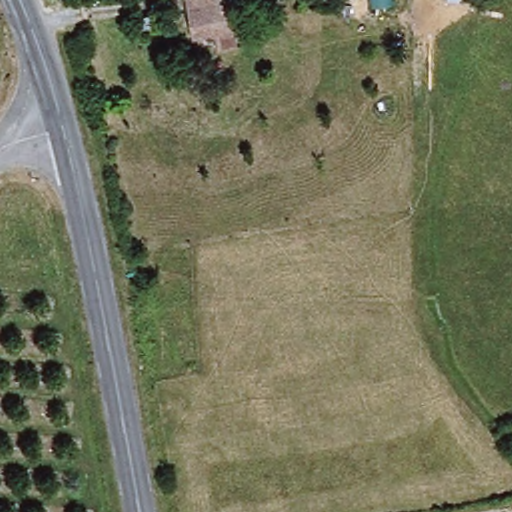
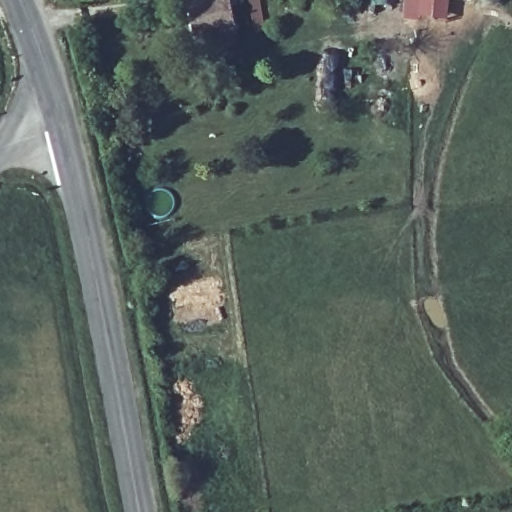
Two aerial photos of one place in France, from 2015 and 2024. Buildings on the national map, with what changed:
unchanged [(210,37),(191,38),(189,0),(234,0),(234,10),(225,10),(226,36),(227,51),(210,51),(210,37)]
new [(388,0),(388,4),(374,5),(374,0),(388,0)]
new [(449,0),(447,21),(403,20),(405,0),(449,0)]
new [(455,0),(462,0),(461,1),(455,0)]

